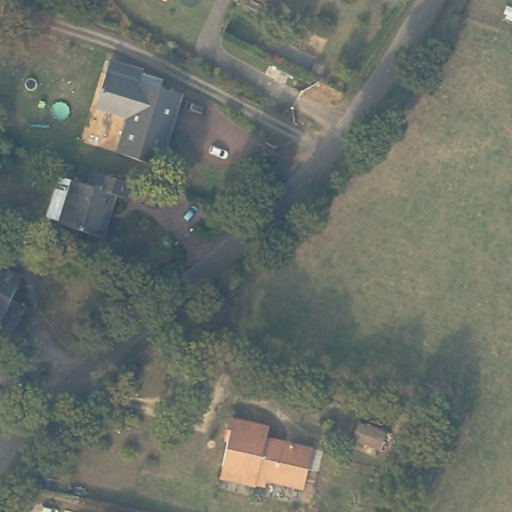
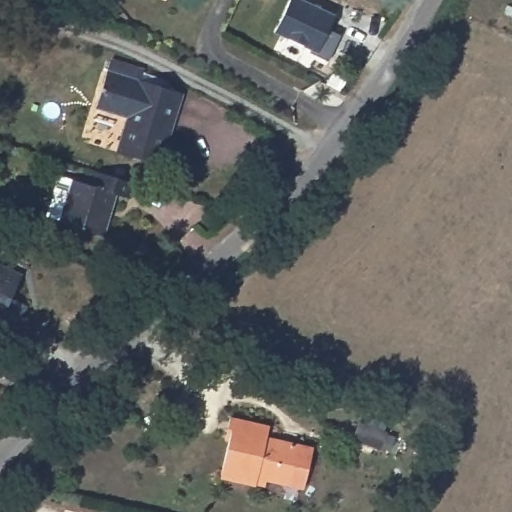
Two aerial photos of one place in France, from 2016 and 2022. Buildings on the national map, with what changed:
unchanged [(153,0),(158,0),(157,2),(153,0)]
new [(341,34),(328,60),(310,52),(310,49),(276,32),(291,0),(306,0),(336,14),(330,28),(341,34)]
unchanged [(159,169),(118,157),(129,121),(95,111),(109,66),(125,70),(142,75),(141,78),(162,84),(160,91),(180,97),(159,169)]
unchanged [(132,192),(128,207),(114,203),(101,245),(60,233),(61,231),(46,227),(59,186),(88,194),(92,180),(132,192)]
unchanged [(16,279),(9,297),(24,304),(9,337),(0,333),(0,318),(1,315),(0,314),(0,264),(20,273),(16,279)]
unchanged [(256,484),(256,485),(221,477),(229,440),(225,439),(230,418),(270,427),(267,437),(313,448),(305,489),(265,480),(265,485),(256,484)]
unchanged [(385,432),(379,449),(353,440),(360,423),(385,432)]

